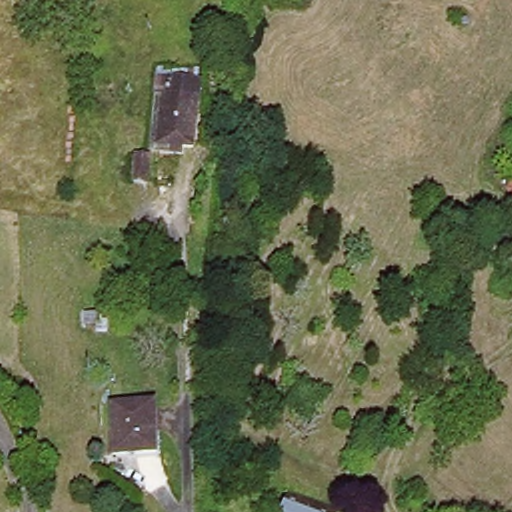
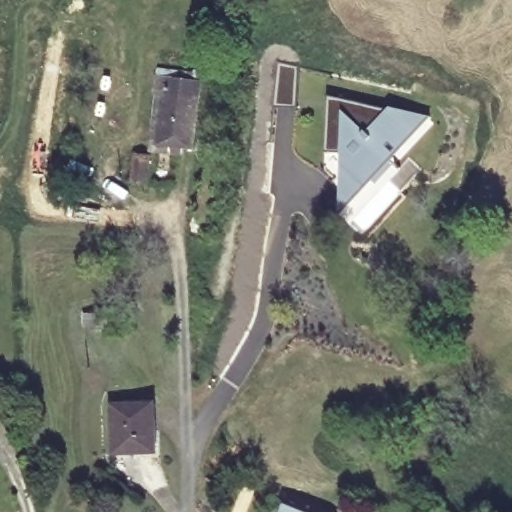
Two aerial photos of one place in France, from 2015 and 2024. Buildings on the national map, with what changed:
new [(279,61),(301,66),(300,109),(275,107),(279,61)]
unchanged [(159,77),(202,82),(195,148),(159,144),(165,93),(157,92),(159,77)]
new [(343,216),(343,209),(344,200),(344,190),(344,172),(343,172),(344,154),(327,152),(330,95),(370,104),(392,109),(394,107),(410,112),(427,116),(436,118),(430,124),(422,132),(421,132),(393,161),(375,181),(353,203),(348,210),(343,216)]
unchanged [(136,153),(152,155),(148,181),(135,180),(132,179),(136,153)]
new [(413,158),(425,170),(405,192),(392,180),(413,158)]
unchanged [(507,189),(512,179),(512,192),(507,189)]
unchanged [(155,403),(157,452),(113,453),(112,404),(155,403)]
unchanged [(344,509),(342,512),(287,512),(287,511),(294,489),(344,509)]

